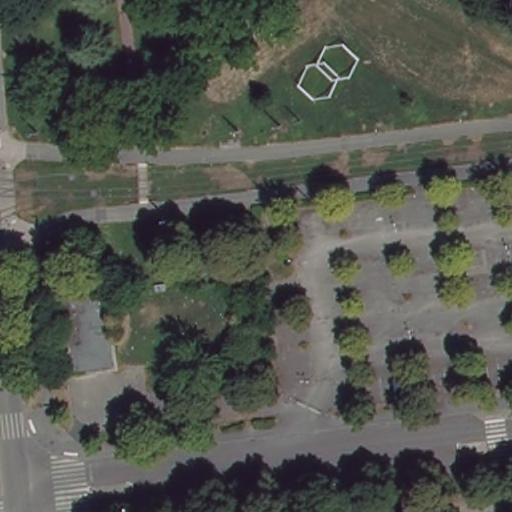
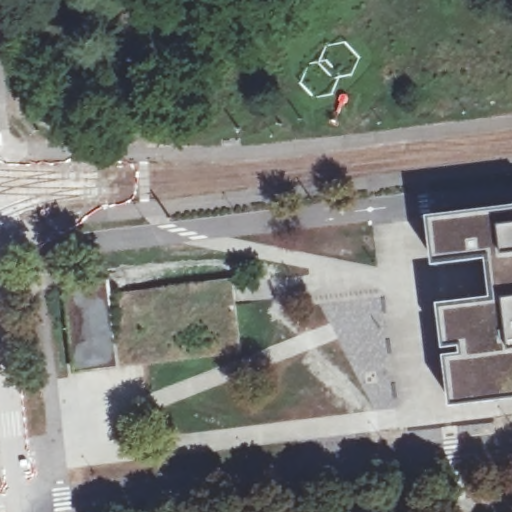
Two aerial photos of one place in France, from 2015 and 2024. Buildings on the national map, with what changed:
new [(455,407),(442,304),(497,298),(493,257),(437,263),(431,216),(512,206),(512,400),(455,407)]
unchanged [(113,277),(115,290),(235,276),(236,280),(238,298),(245,348),(145,361),(124,363),(78,369),(77,357),(67,283),(113,277)]

